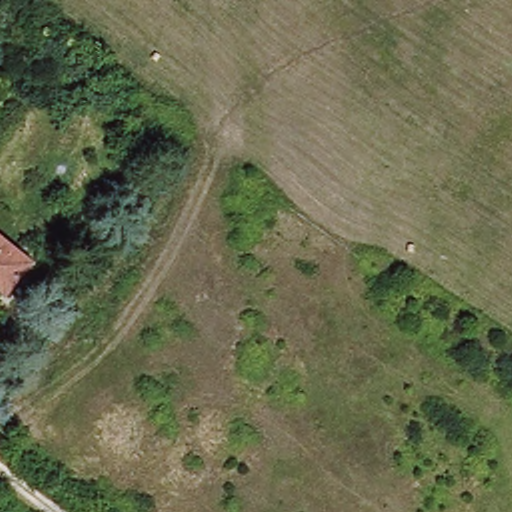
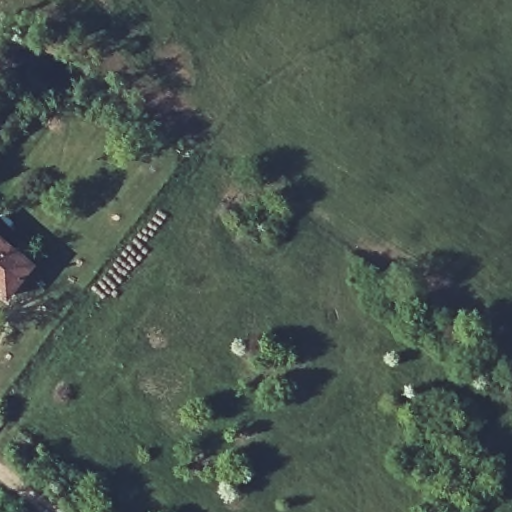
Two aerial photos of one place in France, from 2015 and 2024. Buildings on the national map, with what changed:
unchanged [(0,240),(32,267),(15,288),(5,300),(0,296),(0,240)]

